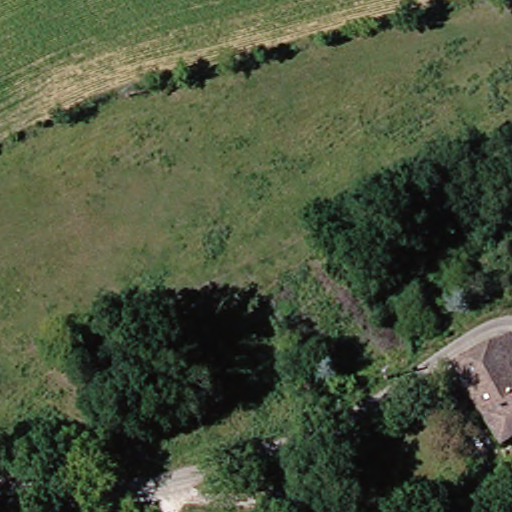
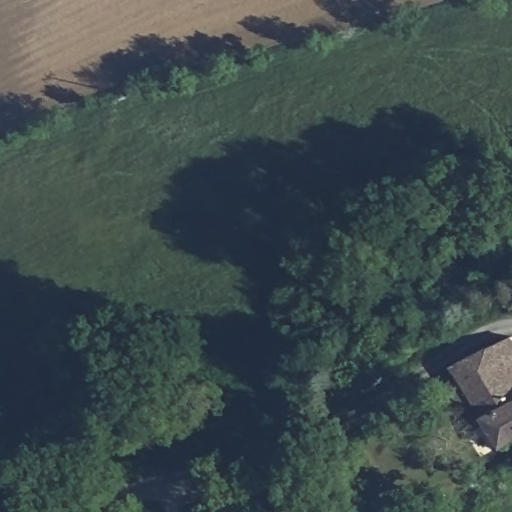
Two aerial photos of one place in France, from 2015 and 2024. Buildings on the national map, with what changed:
unchanged [(505,448),(481,403),(468,408),(454,383),(464,378),(459,365),(501,342),(512,337),(512,444),(505,448)]

